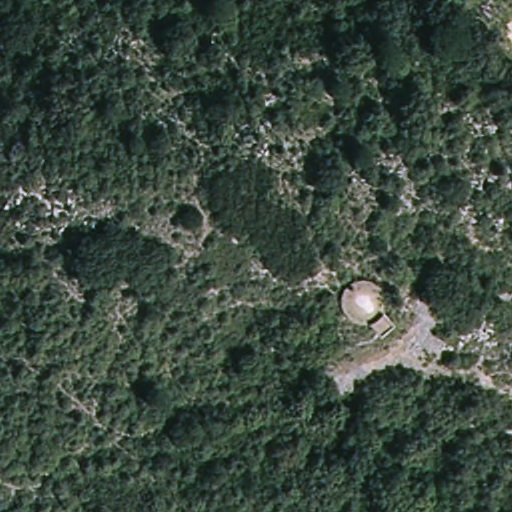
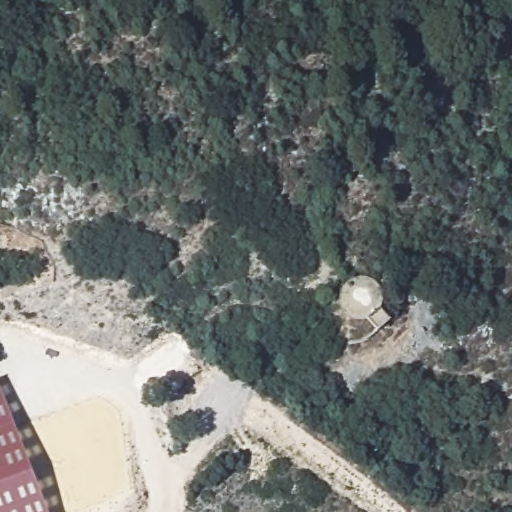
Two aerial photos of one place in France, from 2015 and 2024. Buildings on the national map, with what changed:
new [(48,512),(0,512),(0,387),(48,512)]

